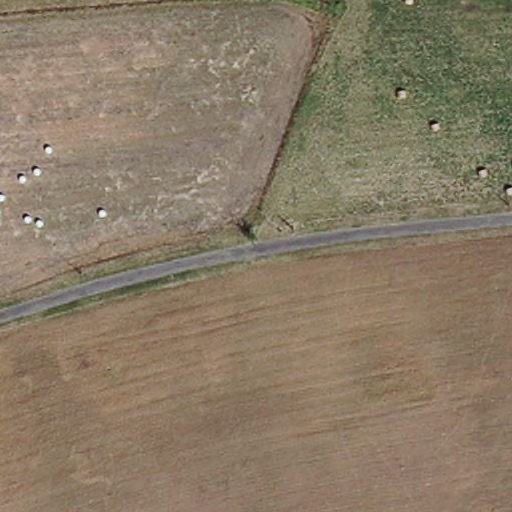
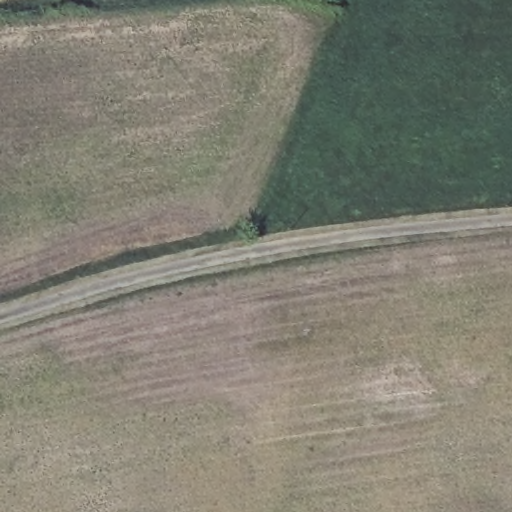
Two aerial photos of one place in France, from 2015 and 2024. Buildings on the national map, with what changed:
[]

